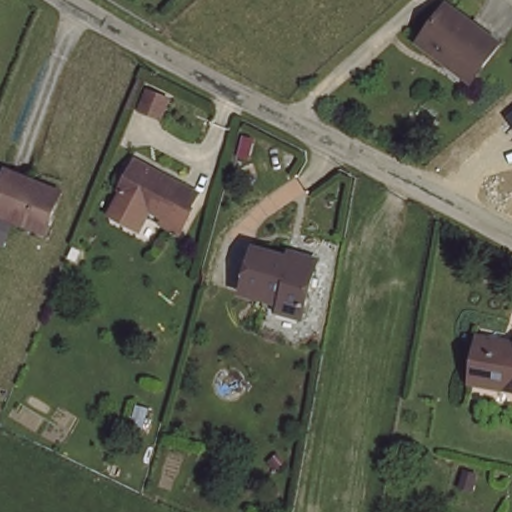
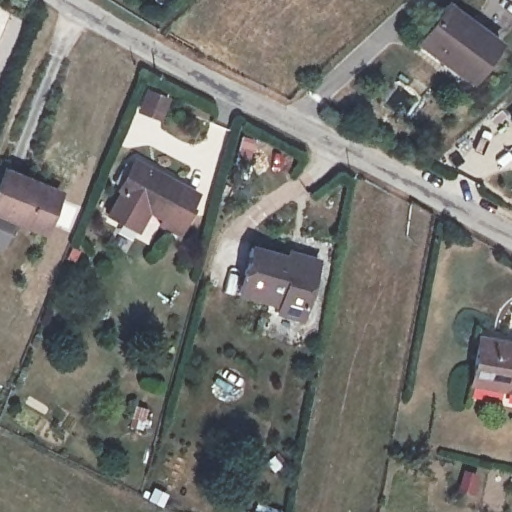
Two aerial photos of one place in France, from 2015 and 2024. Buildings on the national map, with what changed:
unchanged [(447,66),(418,47),(444,5),(500,40),(480,71),(472,83),(447,66)]
unchanged [(512,112),(512,122),(507,116),(512,112)]
unchanged [(120,218),(107,210),(121,186),(117,184),(120,180),(114,178),(124,159),(130,162),(134,154),(197,188),(189,202),(192,204),(178,229),(160,219),(163,213),(147,205),(139,222),(137,225),(120,218)]
unchanged [(45,233),(0,217),(0,182),(4,172),(61,192),(45,233)]
unchanged [(242,292),(255,244),(297,256),(298,250),(321,257),(305,315),(281,309),(283,303),(242,292)]
unchanged [(512,343),(512,386),(500,384),(502,377),(468,369),(477,335),(512,343)]

